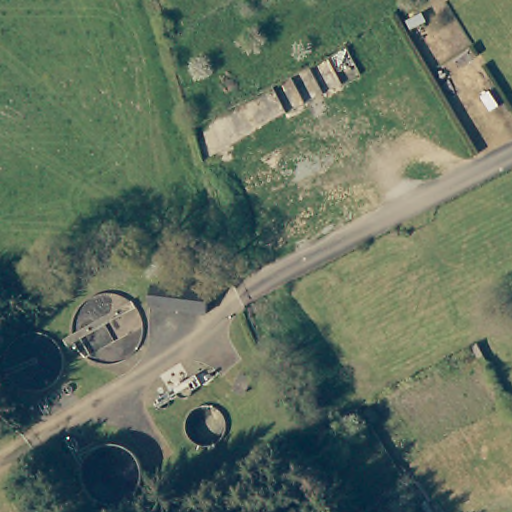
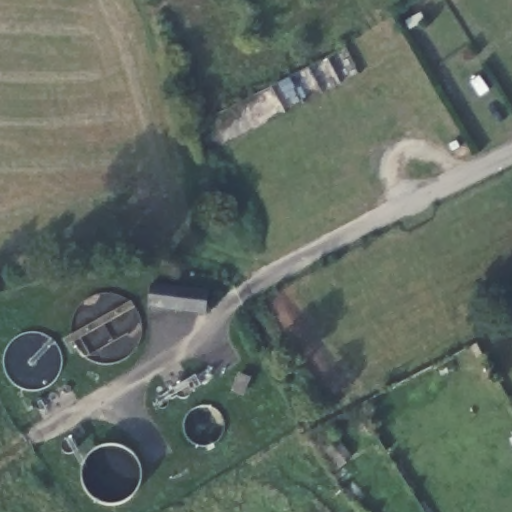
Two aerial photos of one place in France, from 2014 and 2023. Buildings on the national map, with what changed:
unchanged [(148,308),(150,280),(209,290),(204,316),(148,308)]

